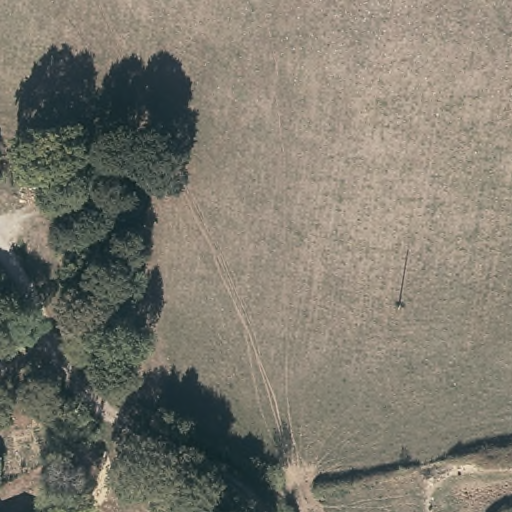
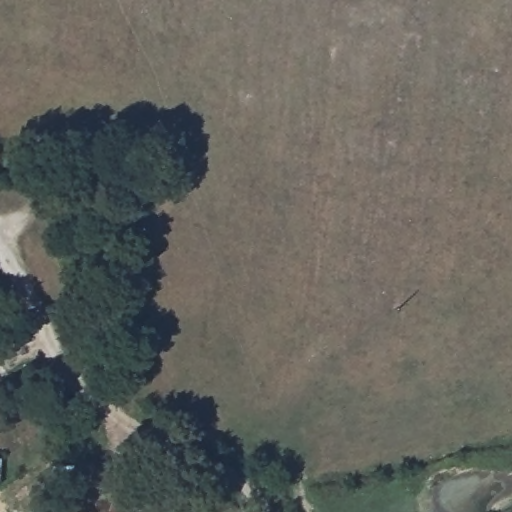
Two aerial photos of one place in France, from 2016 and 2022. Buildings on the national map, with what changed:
unchanged [(2,486),(0,486),(0,462),(4,463),(2,486)]

